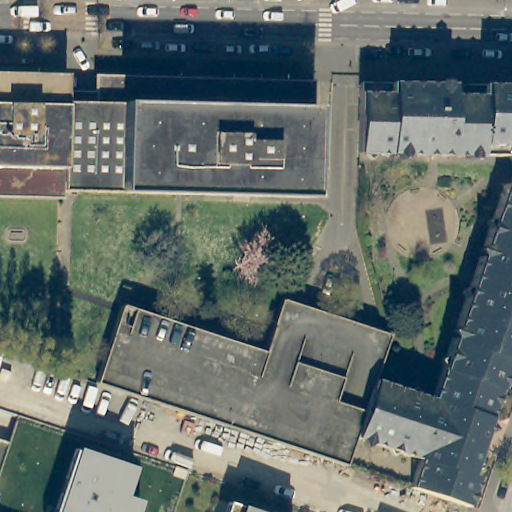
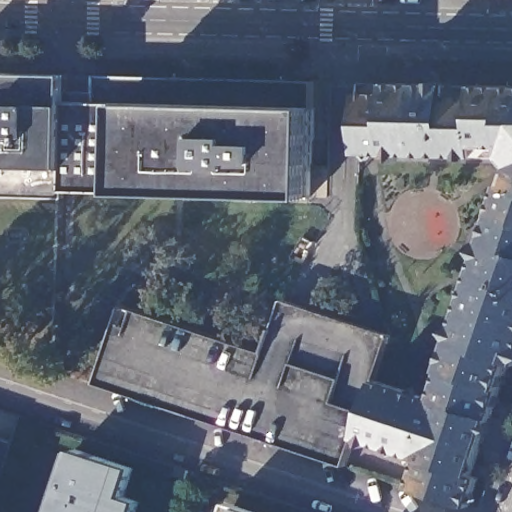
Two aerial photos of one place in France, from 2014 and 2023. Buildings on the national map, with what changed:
unchanged [(69,99),(67,190),(67,199),(0,196),(0,69),(70,71),(69,99)]
unchanged [(69,99),(87,100),(89,90),(99,90),(100,71),(317,79),(312,195),(67,190),(69,99)]
unchanged [(511,151),(361,145),(364,75),(512,81),(512,153),(511,151)]
unchanged [(423,457),(360,436),(379,378),(435,396),(506,184),(510,185),(512,180),(512,361),(511,361),(475,475),(480,477),(471,505),(413,485),(423,457)]
unchanged [(128,304),(268,351),(289,297),(393,335),(387,356),(379,378),(360,436),(350,465),(102,382),(128,304)]
unchanged [(126,497),(141,501),(138,512),(55,512),(76,449),(136,468),(126,497)]
unchanged [(241,506),(257,512),(225,512),(228,502),(241,506)]

